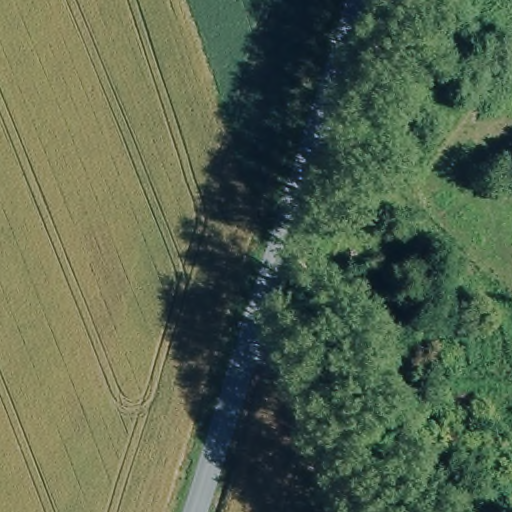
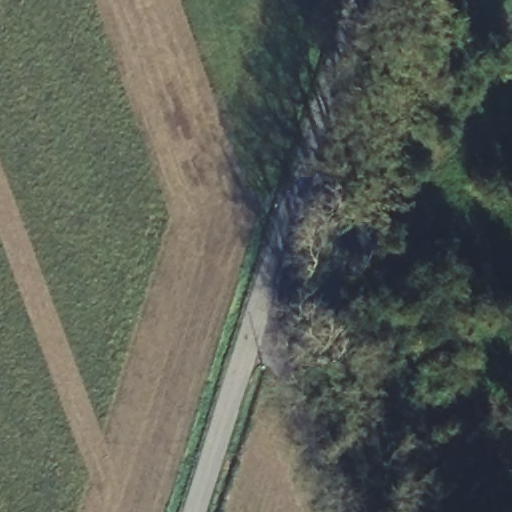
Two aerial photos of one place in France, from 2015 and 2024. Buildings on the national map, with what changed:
unchanged [(502,409),(512,401),(512,426),(502,409)]

